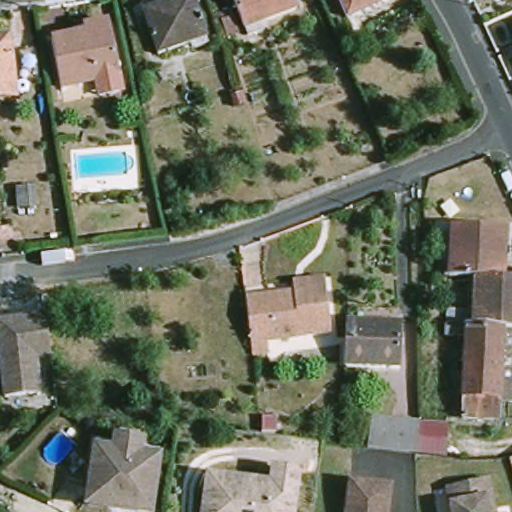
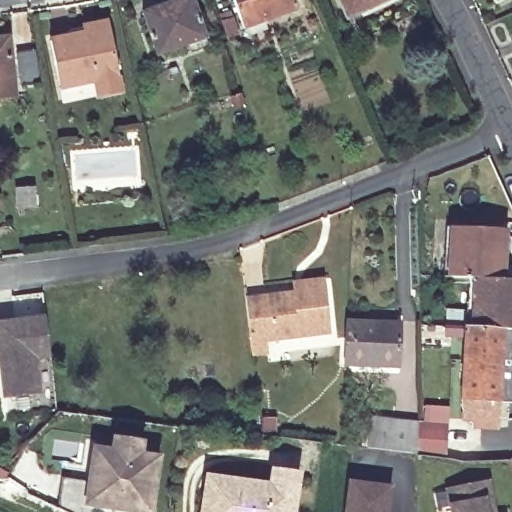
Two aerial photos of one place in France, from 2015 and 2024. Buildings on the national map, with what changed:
unchanged [(193,0),(194,1),(205,38),(156,53),(143,13),(163,7),(185,0),(193,0)]
unchanged [(243,26),(233,0),(294,0),(296,6),(261,19),(263,28),(246,34),(243,26)]
unchanged [(340,0),(385,0),(347,16),(340,0)]
unchanged [(99,74),(100,81),(61,88),(51,40),(89,32),(87,24),(108,20),(108,28),(118,70),(99,74)]
unchanged [(0,85),(0,26),(4,26),(9,62),(12,84),(0,85)]
unchanged [(36,71),(18,75),(12,41),(31,40),(36,71)]
unchanged [(450,282),(452,231),(505,235),(503,285),(480,283),(475,283),(450,282)]
unchanged [(294,293),(293,283),(324,278),(325,288),(331,333),(268,343),(269,354),(253,357),(246,302),(294,293)]
unchanged [(475,283),(480,283),(503,285),(512,285),(512,335),(481,334),(473,333),(475,283)]
unchanged [(49,338),(51,356),(37,358),(41,394),(6,399),(0,353),(0,324),(46,318),(48,332),(49,338)]
unchanged [(347,322),(378,322),(400,323),(399,328),(397,367),(345,365),(344,365),(346,322),(347,322)]
unchanged [(481,334),(512,335),(512,406),(500,405),(498,426),(463,424),(467,345),(446,343),(447,332),(473,333),(481,334)]
unchanged [(370,448),(374,418),(420,423),(425,424),(449,427),(449,458),(433,456),(419,454),(370,448)]
unchanged [(277,420),(277,431),(265,432),(265,420),(277,420)]
unchanged [(114,509),(83,504),(90,454),(91,448),(113,451),(114,444),(134,447),(133,454),(156,458),(155,464),(148,512),(117,512),(114,509)]
unchanged [(512,470),(510,464),(512,463),(512,470)]
unchanged [(213,482),(276,491),(278,476),(304,480),(302,494),(300,512),(209,512),(213,482)]
unchanged [(356,485),(397,490),(393,512),(352,512),(356,485)]
unchanged [(446,493),(481,487),(488,486),(493,512),(449,512),(446,493)]

